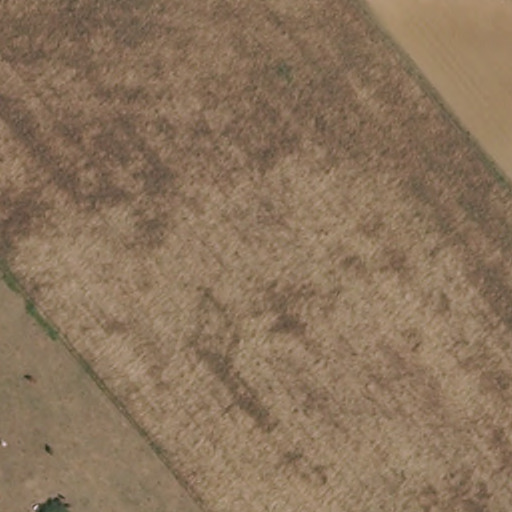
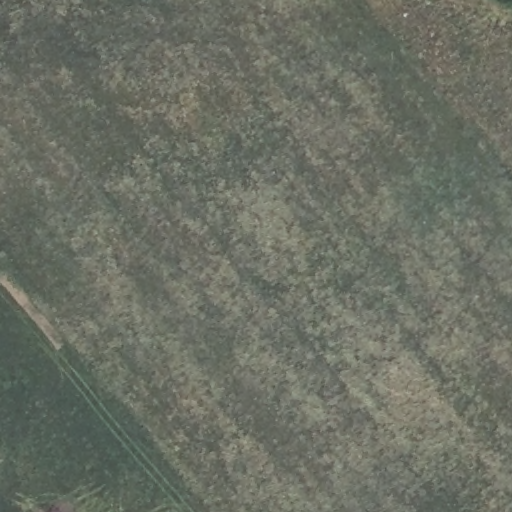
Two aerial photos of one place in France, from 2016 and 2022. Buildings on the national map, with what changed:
[]

